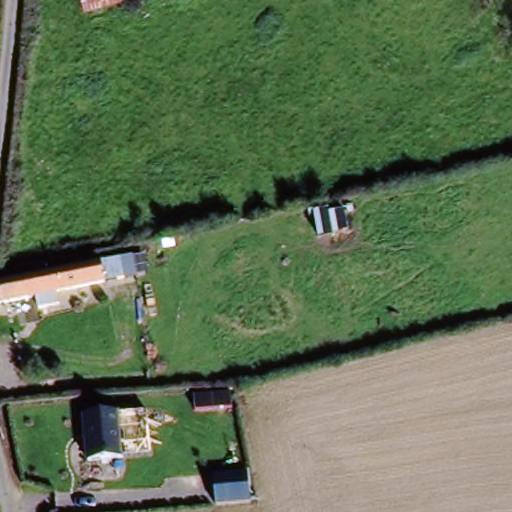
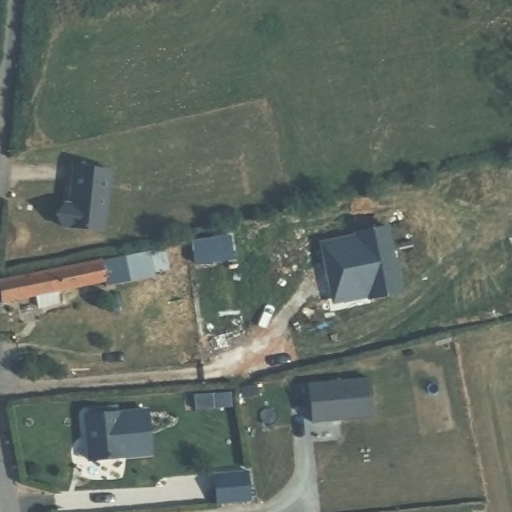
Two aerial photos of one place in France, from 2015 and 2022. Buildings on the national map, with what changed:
unchanged [(77,0),(136,0),(83,13),(77,0)]
new [(60,228),(55,213),(64,201),(70,202),(72,164),(112,169),(105,231),(60,228)]
new [(356,236),(355,232),(388,225),(402,291),(368,297),(367,294),(334,303),(320,243),(356,236)]
new [(95,259),(148,248),(153,271),(100,282),(99,274),(95,259)]
unchanged [(94,254),(99,274),(58,284),(60,297),(38,301),(36,289),(0,297),(0,276),(94,254)]
new [(313,421),(309,385),(369,379),(373,417),(313,421)]
unchanged [(81,415),(119,411),(124,459),(86,462),(81,415)]
new [(217,501),(213,472),(248,469),(252,497),(217,501)]

